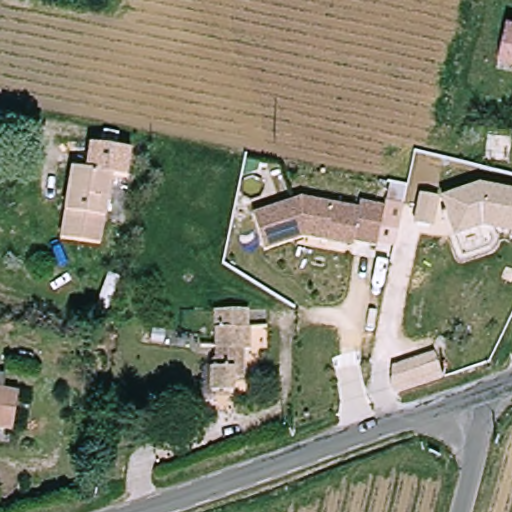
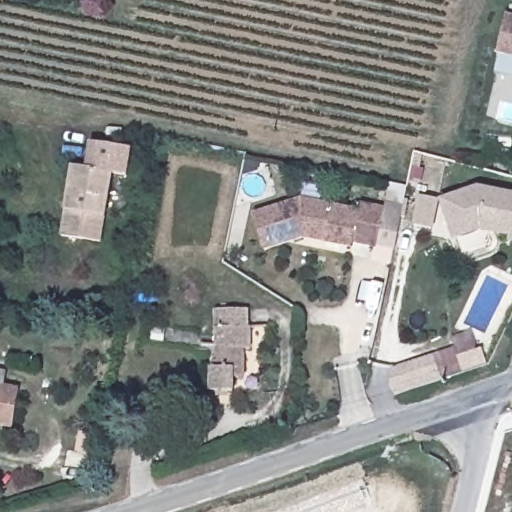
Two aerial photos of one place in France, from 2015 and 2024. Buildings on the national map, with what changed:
unchanged [(507,15),(512,16),(512,56),(499,53),(507,15)]
unchanged [(94,171),(97,146),(134,152),(129,178),(114,177),(104,242),(67,235),(76,170),(94,171)]
unchanged [(512,198),(512,239),(484,234),(457,244),(444,206),(480,192),(512,198)]
unchanged [(328,241),(309,237),(305,236),(266,248),(255,212),(304,197),(314,200),(360,210),(363,202),(386,208),(388,203),(405,207),(402,221),(399,234),(382,230),(378,247),(355,242),(354,247),(328,241)]
unchanged [(440,205),(433,235),(416,231),(423,201),(440,205)]
unchanged [(253,316),(253,333),(255,333),(255,356),(248,356),(247,385),(237,384),(236,398),(215,397),(216,377),(216,373),(217,373),(217,366),(221,363),(222,350),(222,315),(253,316)]
unchanged [(442,382),(393,398),(390,391),(393,370),(432,357),(442,382)]
unchanged [(10,371),(9,385),(24,388),(17,425),(0,422),(0,370),(10,371)]

